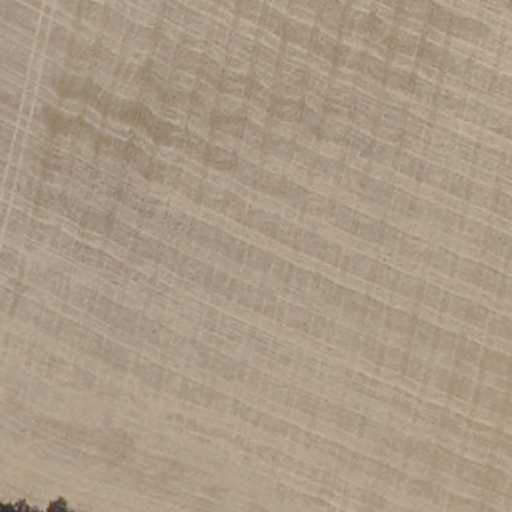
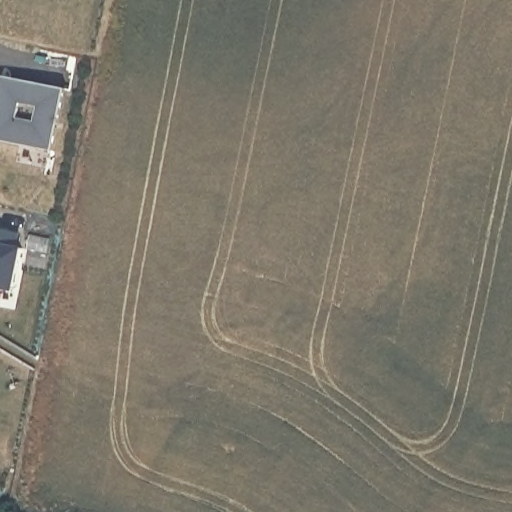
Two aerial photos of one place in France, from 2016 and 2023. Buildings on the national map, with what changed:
new [(63,88),(53,148),(0,138),(0,91),(2,76),(63,88)]
new [(11,293),(0,291),(0,235),(16,238),(13,252),(19,254),(11,293)]

